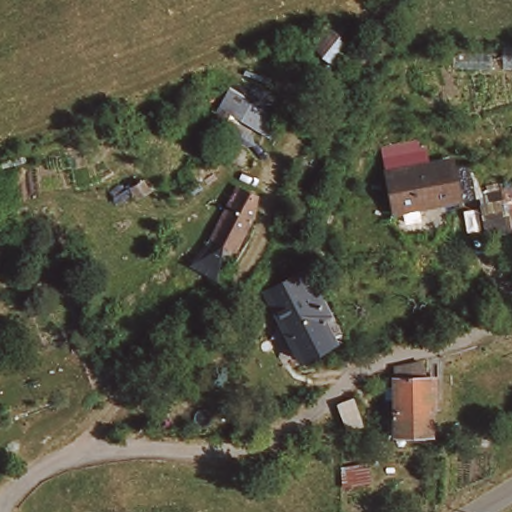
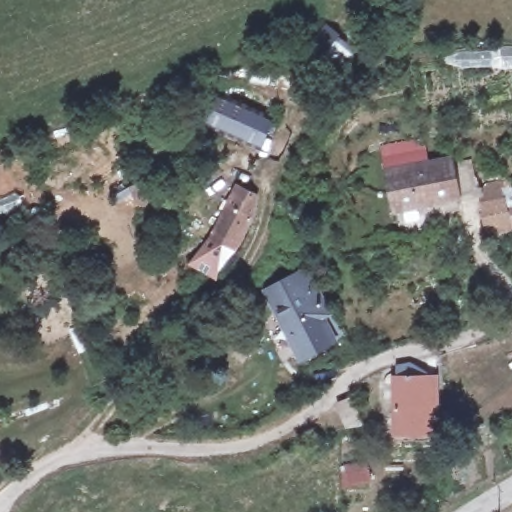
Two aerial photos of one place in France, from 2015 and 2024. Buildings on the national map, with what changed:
unchanged [(394,208),(386,171),(446,158),(455,197),(441,200),(394,208)]
unchanged [(252,203),(240,247),(219,239),(235,197),(252,203)]
unchanged [(304,276),(328,346),(301,356),(277,285),(304,276)]
unchanged [(428,374),(432,426),(398,428),(395,375),(428,374)]

